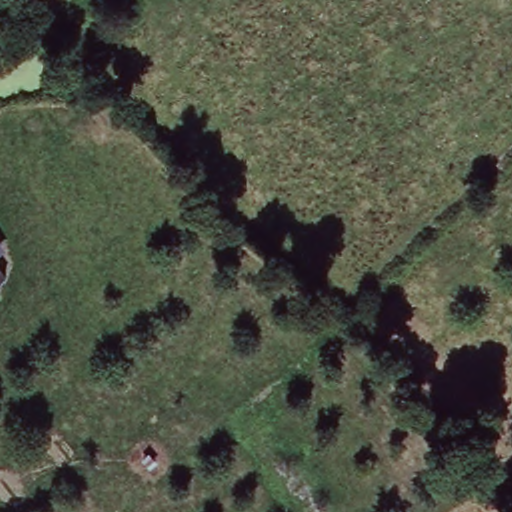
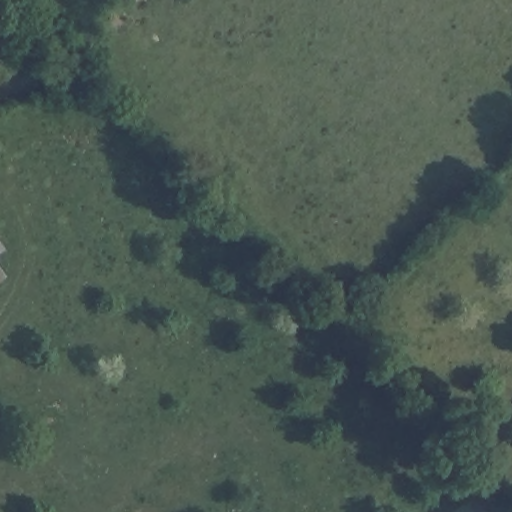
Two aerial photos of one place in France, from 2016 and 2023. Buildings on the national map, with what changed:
unchanged [(4,251),(0,255),(0,246),(4,251)]
unchanged [(7,278),(0,283),(0,264),(7,278)]

